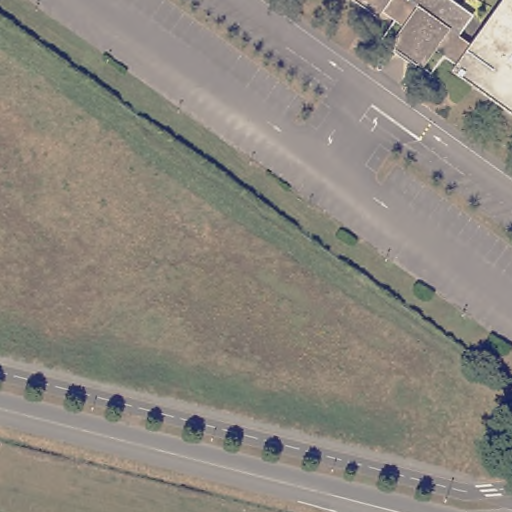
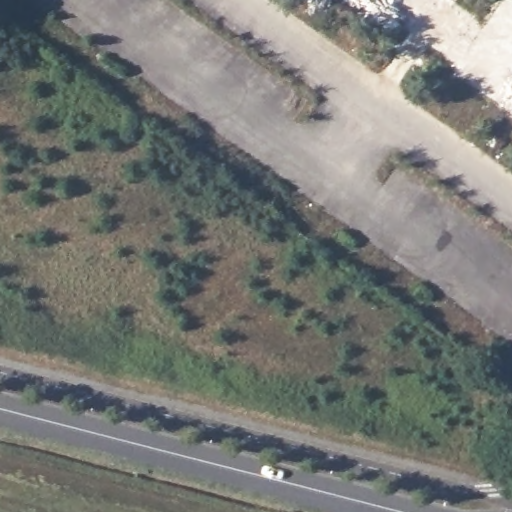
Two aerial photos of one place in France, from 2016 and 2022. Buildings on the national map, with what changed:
demolished [(377,24),(345,0),(398,0),(415,12),(417,11),(450,35),(448,36),(467,50),(469,51),(504,0),(512,0),(512,119),(466,86),(452,76),(457,68),(437,53),(429,47),(421,57),(405,45),(411,34),(403,29),(384,15),(377,24)]
new [(407,0),(451,0),(473,16),(458,36),(468,43),(499,0),(512,0),(512,87),(508,85),(487,98),(449,71),(452,66),(432,53),(420,70),(387,48),(400,28),(379,15),(377,19),(350,0),(406,0),(407,1),(407,0)]

